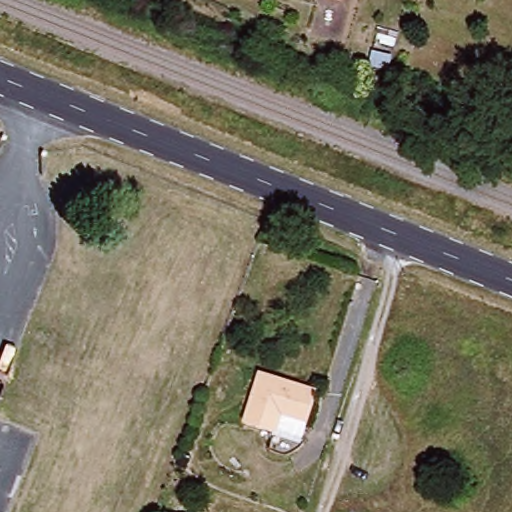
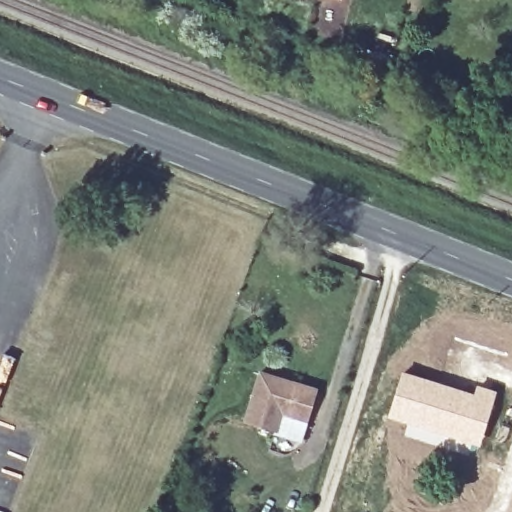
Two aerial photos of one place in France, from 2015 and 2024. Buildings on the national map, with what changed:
unchanged [(370,61),(372,53),(392,57),(391,63),(390,69),(369,65),(370,61)]
new [(401,371),(473,394),(476,385),(496,392),(476,455),(403,435),(407,424),(386,417),(401,371)]
unchanged [(264,373),(322,391),(312,423),(286,415),(281,433),(249,423),(264,373)]

